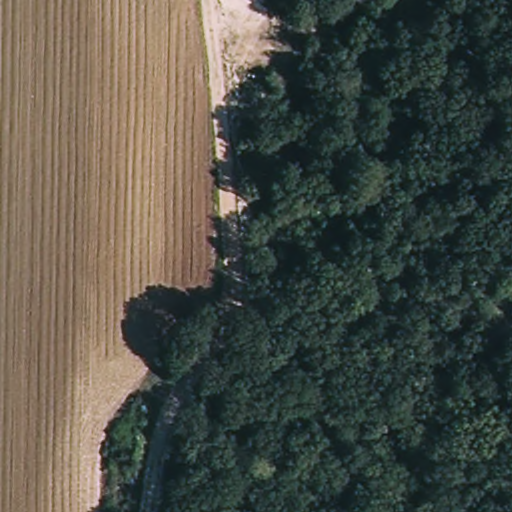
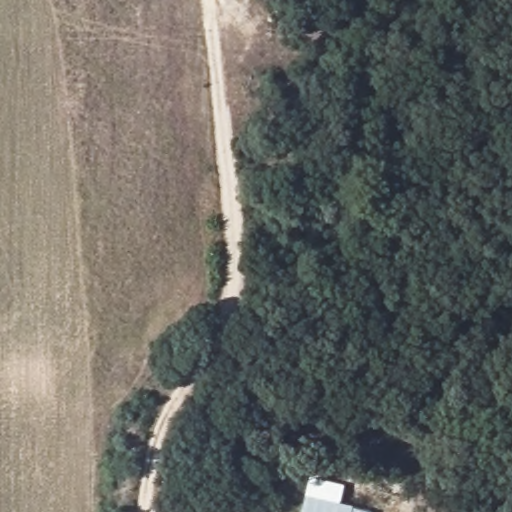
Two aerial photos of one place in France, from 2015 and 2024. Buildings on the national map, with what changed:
new [(308,476),(344,485),(339,502),(352,506),(352,507),(371,511),(371,512),(300,512),(308,476)]

